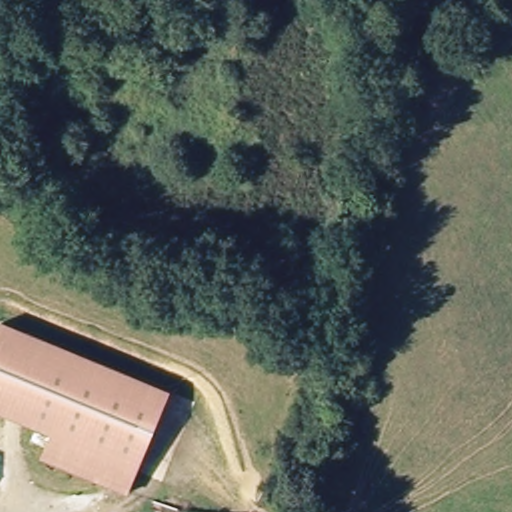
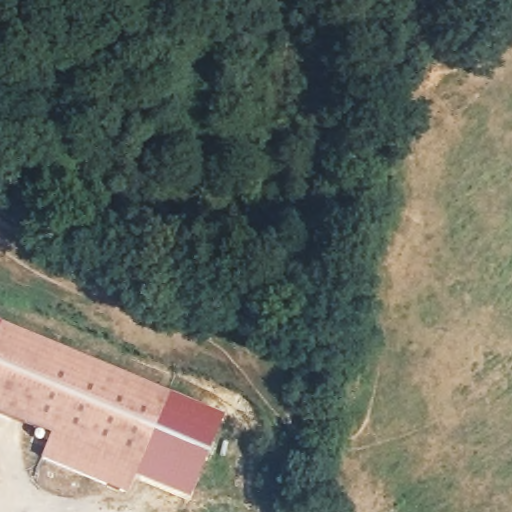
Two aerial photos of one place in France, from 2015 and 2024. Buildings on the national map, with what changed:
new [(0,329),(0,323),(105,366),(0,329)]
unchanged [(131,488),(46,458),(55,433),(0,414),(0,329),(167,389),(131,488)]
new [(225,413),(189,498),(136,476),(167,391),(225,413)]

